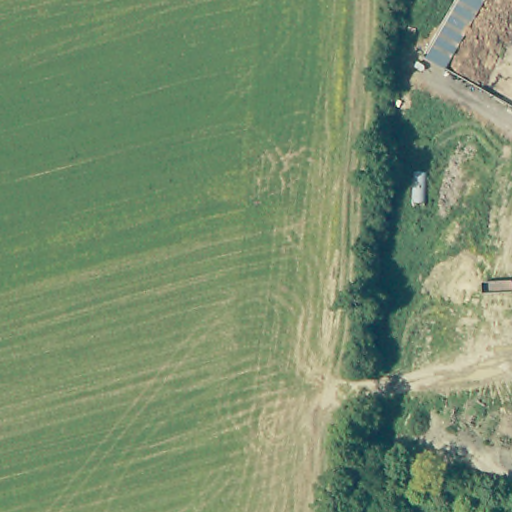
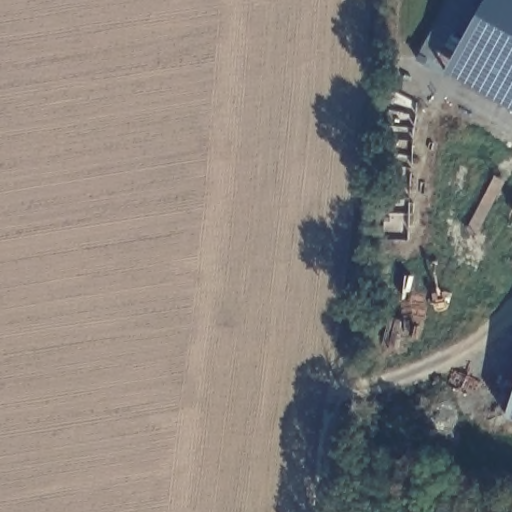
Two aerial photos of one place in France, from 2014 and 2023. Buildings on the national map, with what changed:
new [(447,71),(431,59),(463,0),(512,0),(512,108),(447,71)]
new [(510,413),(512,406),(512,413),(510,413)]

